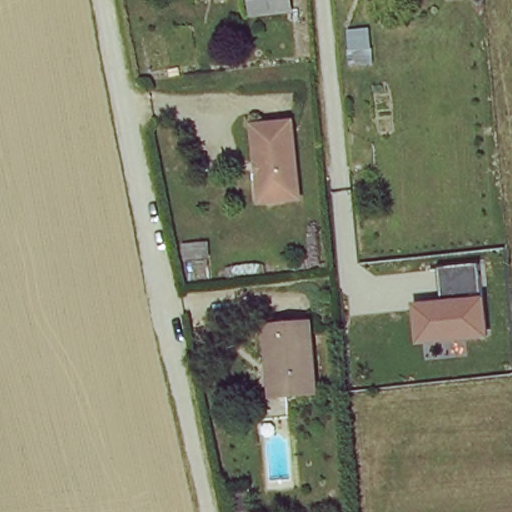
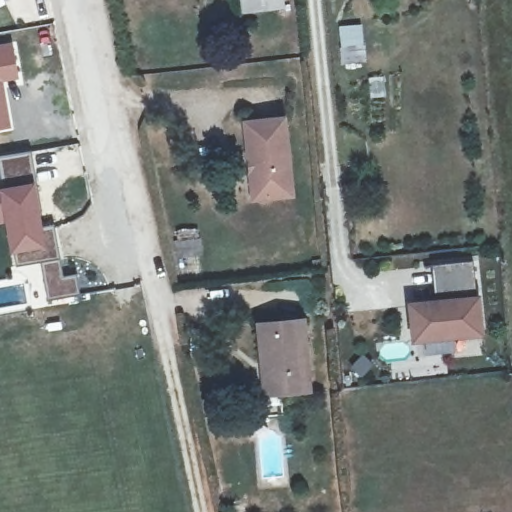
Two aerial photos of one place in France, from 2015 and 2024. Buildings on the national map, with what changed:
new [(17,76),(0,79),(0,48),(12,45),(17,76)]
new [(3,89),(10,126),(0,128),(0,89),(3,89)]
unchanged [(251,160),(247,121),(285,116),(293,194),(264,198),(255,199),(251,160)]
new [(41,263),(60,260),(16,267),(8,220),(0,222),(0,185),(2,185),(0,173),(0,158),(32,152),(42,212),(37,213),(40,228),(55,225),(63,278),(77,275),(80,296),(66,298),(47,302),(41,263)]
unchanged [(473,262),(482,338),(410,345),(404,303),(436,300),(433,265),(473,262)]
unchanged [(300,319),(306,390),(268,395),(266,361),(258,361),(255,322),(300,319)]

